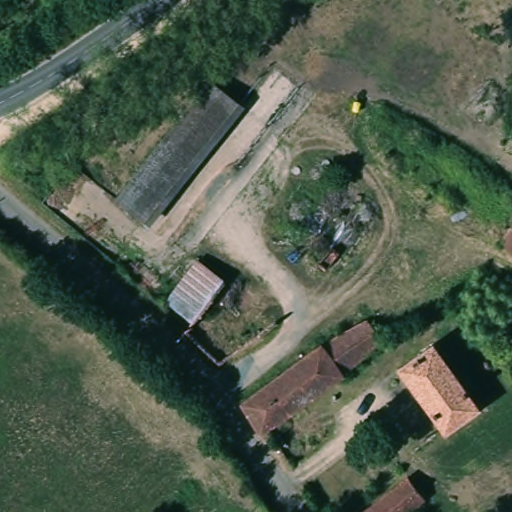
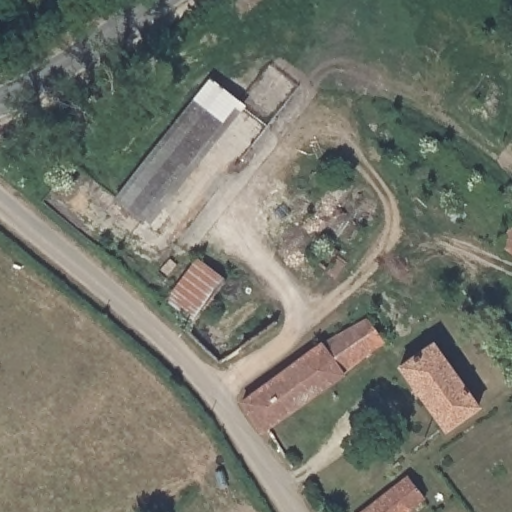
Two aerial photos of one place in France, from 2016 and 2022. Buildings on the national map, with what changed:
unchanged [(219,80),(231,90),(247,102),(155,220),(126,197),(219,80)]
unchanged [(222,282),(209,299),(195,318),(168,297),(199,258),(225,279),(222,282)]
unchanged [(209,299),(222,282),(225,279),(278,322),(221,362),(186,329),(195,318),(209,299)]
unchanged [(322,342),(369,319),(386,342),(347,372),(262,432),(242,403),(242,402),(322,342)]
unchanged [(480,406),(464,417),(446,430),(401,367),(435,343),(480,406)]
unchanged [(427,496),(406,512),(362,512),(410,474),(427,496)]

